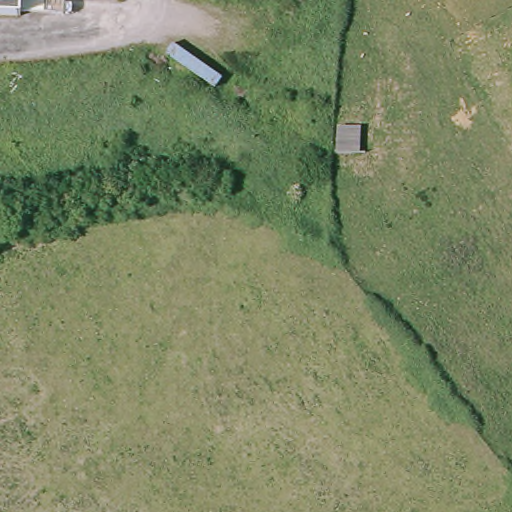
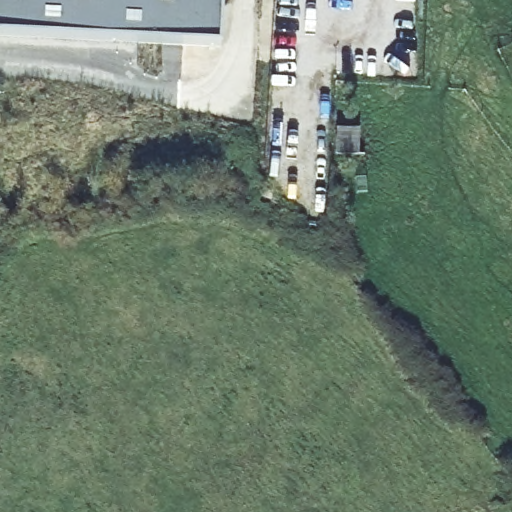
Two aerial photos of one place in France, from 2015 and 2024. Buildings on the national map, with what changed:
demolished [(0,17),(0,0),(15,0),(13,18),(0,17)]
new [(0,35),(0,0),(221,0),(219,44),(0,35)]

